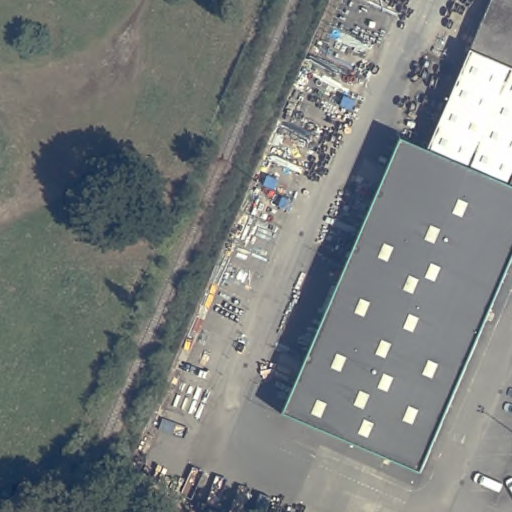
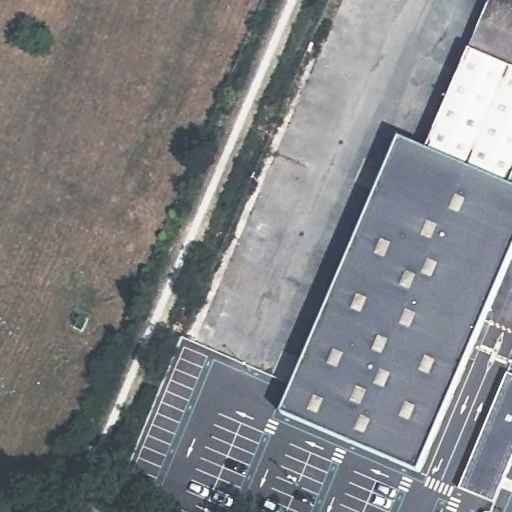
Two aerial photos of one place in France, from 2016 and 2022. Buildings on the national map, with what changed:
unchanged [(512,0),(512,182),(508,190),(426,155),(493,0),(512,0)]
unchanged [(508,190),(511,192),(512,192),(512,259),(419,476),(283,417),(400,143),(426,155),(508,190)]
unchanged [(508,190),(512,182),(512,192),(511,192),(508,190)]
new [(512,376),(512,463),(495,505),(457,490),(507,374),(512,376)]

